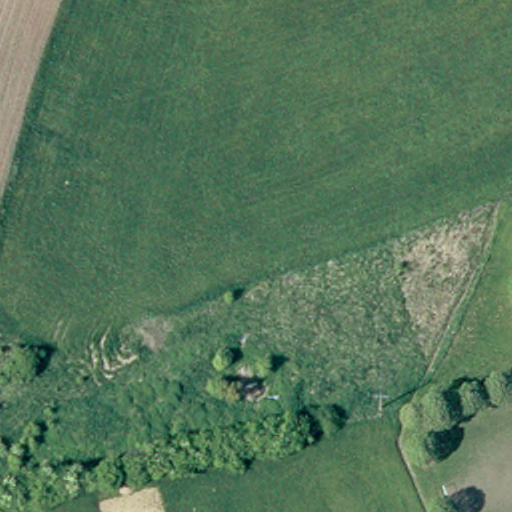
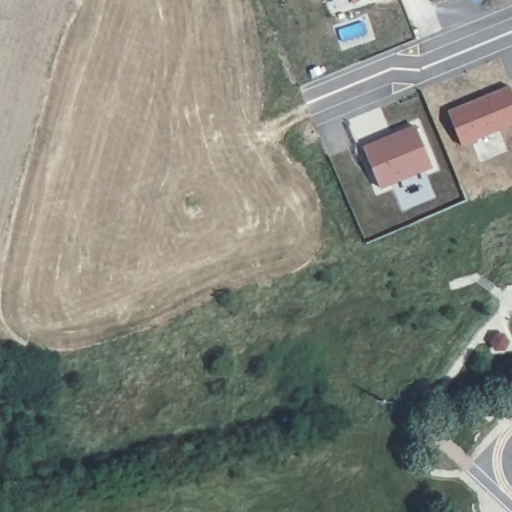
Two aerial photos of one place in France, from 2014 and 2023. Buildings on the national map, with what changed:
new [(351,0),(356,0),(352,1),(351,0)]
new [(447,111),(510,86),(512,92),(512,125),(462,145),(447,111)]
new [(380,187),(364,147),(415,126),(432,165),(380,187)]
new [(504,336),(509,344),(505,352),(495,352),(490,345),(495,336),(504,336)]
demolished [(245,407),(235,375),(269,365),(278,396),(245,407)]

